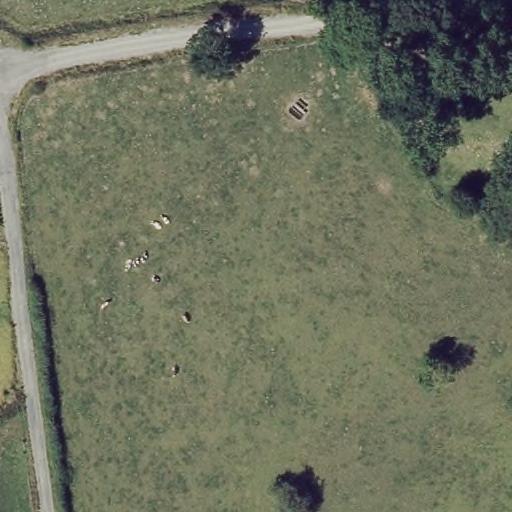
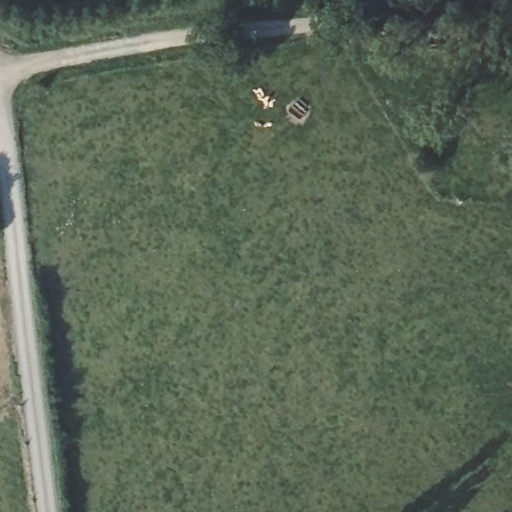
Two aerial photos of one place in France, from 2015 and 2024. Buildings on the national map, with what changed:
[]

